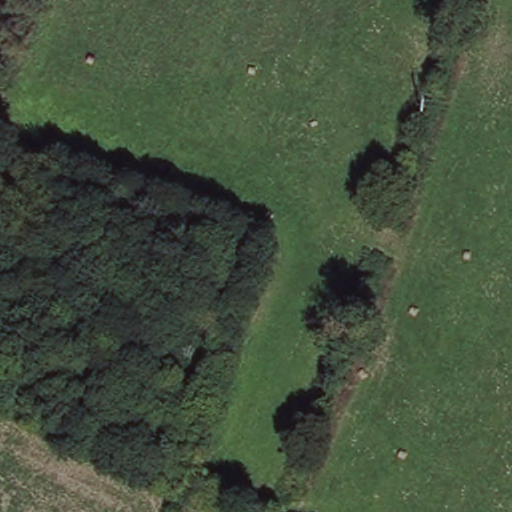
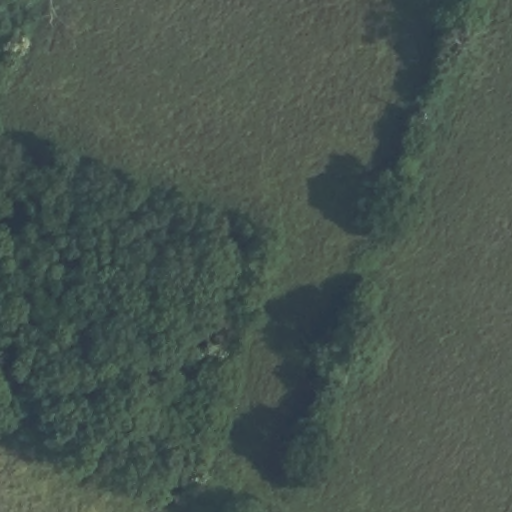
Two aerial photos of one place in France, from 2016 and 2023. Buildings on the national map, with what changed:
unchanged [(207,306),(220,267),(235,277),(224,313),(207,306)]

